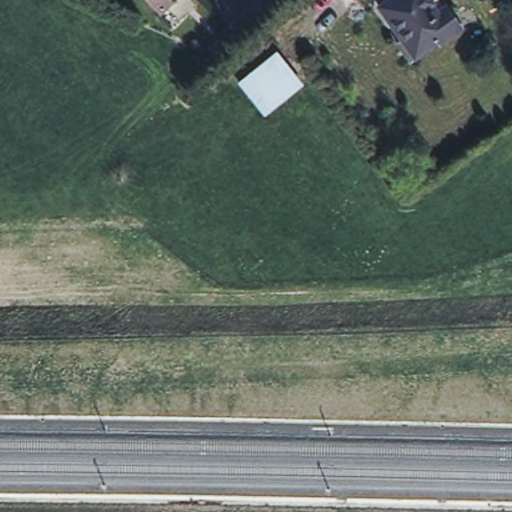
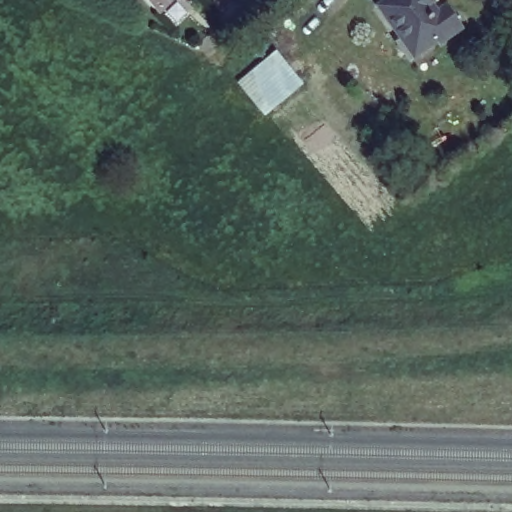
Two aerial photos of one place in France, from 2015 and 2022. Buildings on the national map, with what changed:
unchanged [(150,0),(179,0),(166,15),(150,0)]
unchanged [(431,0),(434,4),(429,7),(434,14),(444,7),(459,29),(444,41),(439,36),(409,58),(397,41),(402,37),(378,7),(388,0),(431,0)]
unchanged [(303,88),(273,115),(244,86),(274,59),(303,88)]

